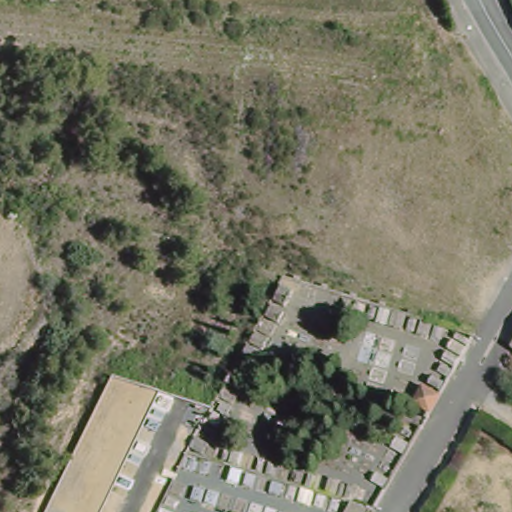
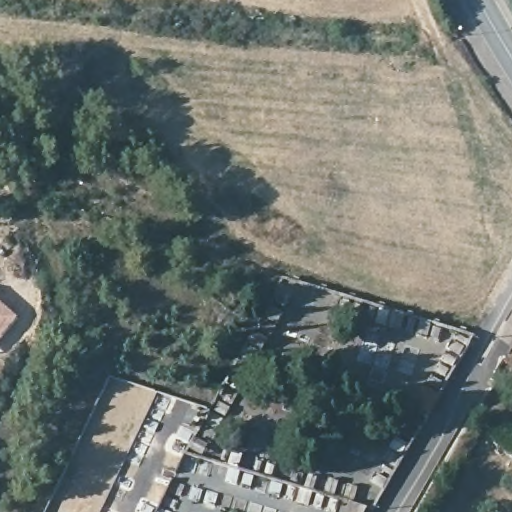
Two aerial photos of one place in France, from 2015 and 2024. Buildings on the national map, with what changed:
new [(0,342),(0,301),(19,318),(0,342)]
unchanged [(508,349),(512,341),(512,352),(508,349)]
unchanged [(401,399),(411,382),(431,394),(420,412),(401,399)]

